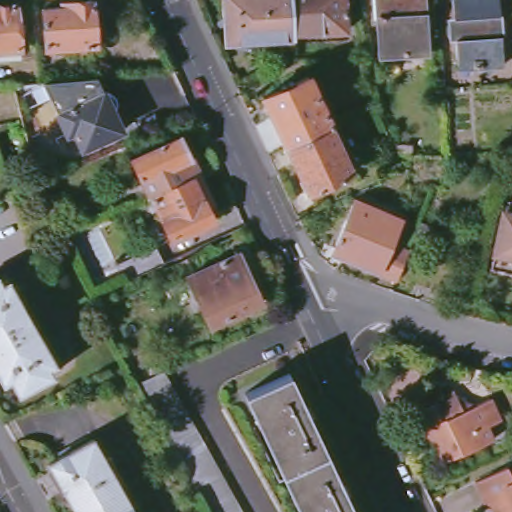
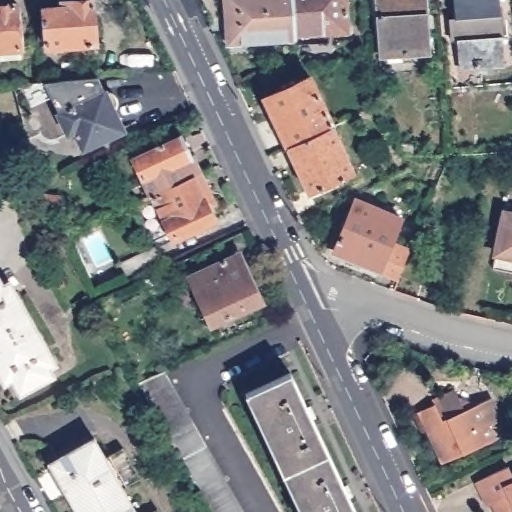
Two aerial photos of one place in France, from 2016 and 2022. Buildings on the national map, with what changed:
unchanged [(93,0),(96,44),(44,48),(41,8),(61,7),(60,1),(73,0),(93,0)]
unchanged [(236,13),(225,15),(224,0),(293,0),(295,34),(296,40),(238,44),(236,13)]
unchanged [(295,34),(293,0),(345,0),(347,30),(295,34)]
unchanged [(413,52),(414,55),(402,56),(402,53),(381,55),(377,0),(422,0),(427,51),(413,52)]
unchanged [(500,13),(505,66),(460,68),(455,17),(459,17),(457,0),(494,0),(495,14),(500,13)]
unchanged [(20,4),(25,49),(0,52),(0,6),(20,4)]
unchanged [(263,97),(281,88),(278,84),(293,78),(295,81),(309,75),(332,125),(286,146),(263,97)]
unchanged [(55,93),(66,92),(108,87),(114,100),(115,102),(120,103),(122,105),(126,109),(127,113),(126,116),(123,120),(132,140),(93,159),(85,141),(77,144),(55,93)]
unchanged [(332,125),(354,171),(309,194),(286,146),(332,125)]
unchanged [(183,135),(201,172),(153,195),(150,197),(132,159),(183,135)]
unchanged [(5,164),(0,167),(0,149),(5,164)]
unchanged [(201,172),(222,218),(172,241),(153,195),(201,172)]
unchanged [(63,198),(61,212),(44,211),(42,195),(63,198)]
unchanged [(335,248),(356,200),(401,220),(391,244),(410,251),(408,255),(397,281),(378,273),(358,264),(361,258),(335,248)]
unchanged [(512,257),(501,254),(507,213),(512,214),(512,257)]
unchanged [(155,248),(163,264),(125,282),(117,266),(155,248)]
unchanged [(240,254),(262,302),(210,326),(188,277),(240,254)]
unchanged [(9,295),(16,293),(47,350),(42,353),(53,375),(18,395),(10,379),(3,384),(0,379),(0,279),(9,295)]
unchanged [(248,512),(218,512),(143,378),(170,366),(248,512)]
unchanged [(355,512),(299,512),(244,394),(290,373),(355,512)]
unchanged [(461,404),(469,407),(490,397),(501,419),(487,425),(495,439),(445,463),(419,411),(434,404),(433,402),(455,391),(461,404)]
unchanged [(50,463),(95,438),(105,455),(122,444),(143,482),(125,492),(137,512),(77,512),(50,463)]
unchanged [(493,504),(486,506),(475,482),(508,466),(512,476),(512,512),(497,512),(493,504)]
unchanged [(160,512),(142,512),(156,504),(160,512)]

